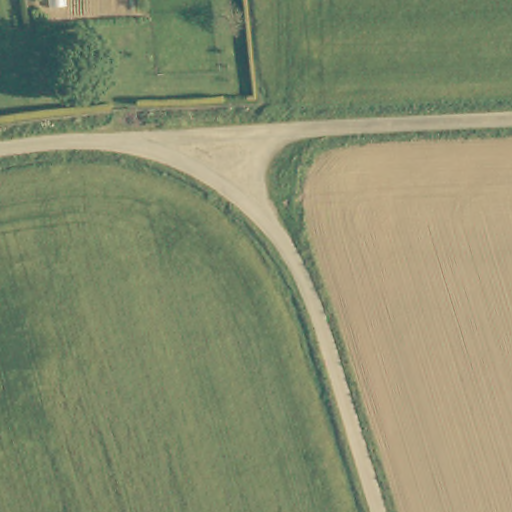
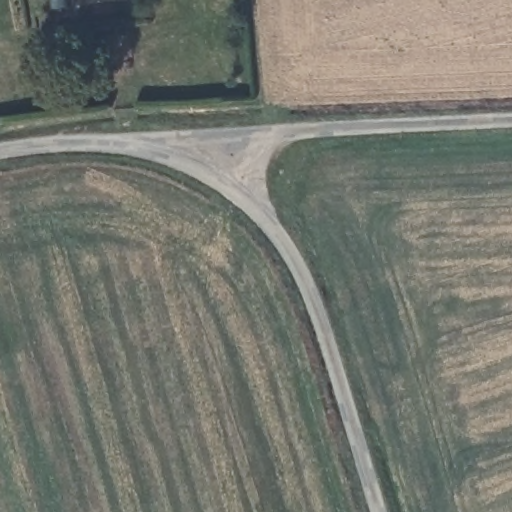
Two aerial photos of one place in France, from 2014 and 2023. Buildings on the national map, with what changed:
[]

